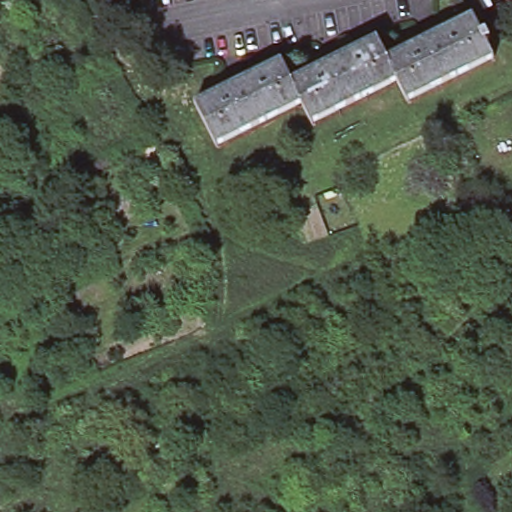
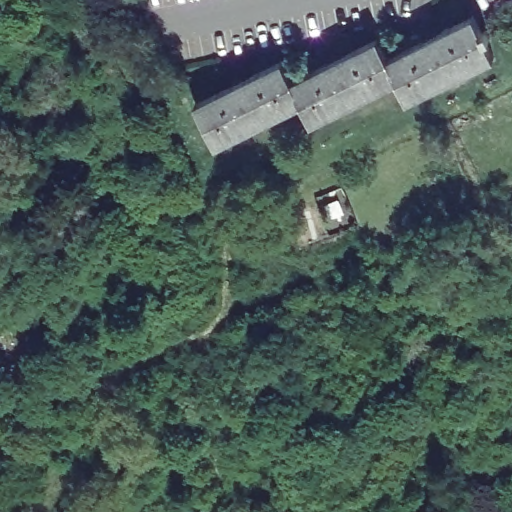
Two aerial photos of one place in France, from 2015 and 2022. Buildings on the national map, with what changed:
unchanged [(493,53),(492,53),(490,53),(409,94),(409,95),(407,96),(397,75),(314,117),(313,118),(312,119),(301,96),(219,139),(219,140),(217,141),(196,99),(197,98),(197,99),(281,58),(280,56),(282,55),(293,76),(377,35),(376,34),(378,33),(388,54),(472,12),(472,11),(493,53)]

